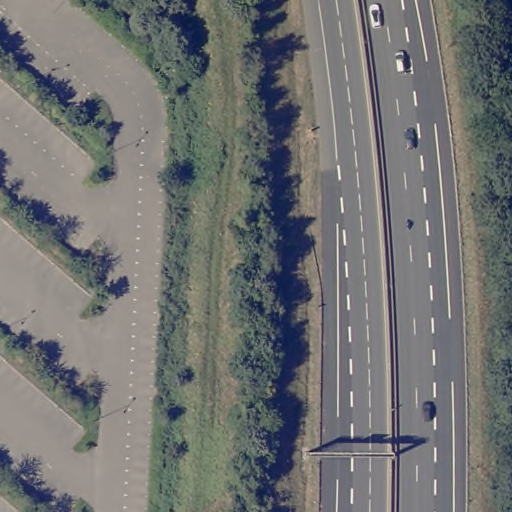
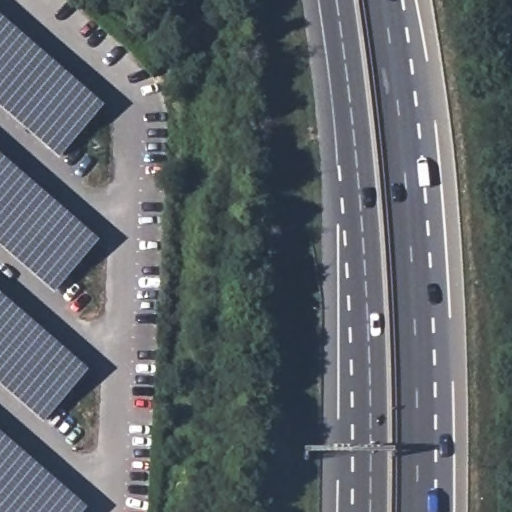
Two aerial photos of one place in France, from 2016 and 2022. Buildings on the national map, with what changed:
new [(60,159),(0,107),(0,17),(104,106),(60,159)]
new [(52,294),(0,249),(0,158),(98,243),(52,294)]
new [(42,424),(0,387),(0,297),(87,373),(42,424)]
new [(84,512),(0,512),(0,436),(86,510),(84,512)]

